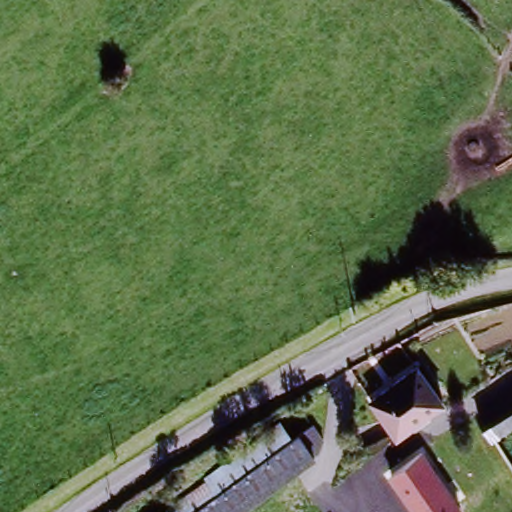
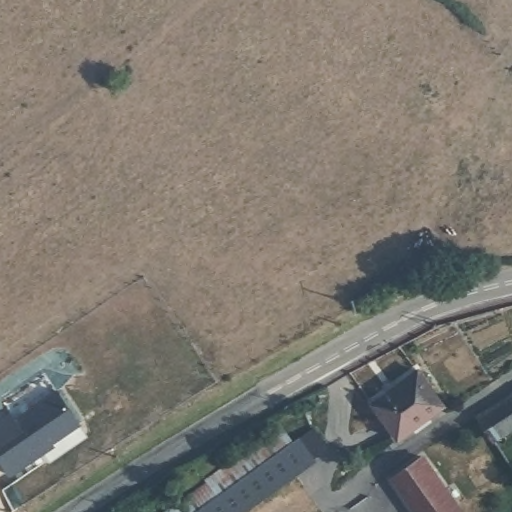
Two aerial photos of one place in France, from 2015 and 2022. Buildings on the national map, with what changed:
unchanged [(405,447),(380,413),(420,382),(445,416),(405,447)]
new [(14,418),(55,388),(81,423),(55,442),(56,446),(10,477),(0,464),(0,419),(10,412),(14,418)]
unchanged [(478,420),(512,399),(512,431),(493,442),(478,420)]
unchanged [(206,488),(232,467),(279,434),(291,450),(302,442),(317,432),(327,445),(327,458),(318,464),(252,512),(174,512),(206,488)]
unchanged [(459,512),(412,512),(391,482),(421,458),(459,512)]

